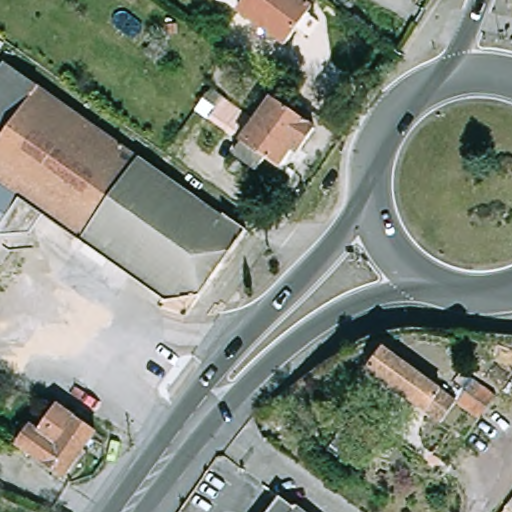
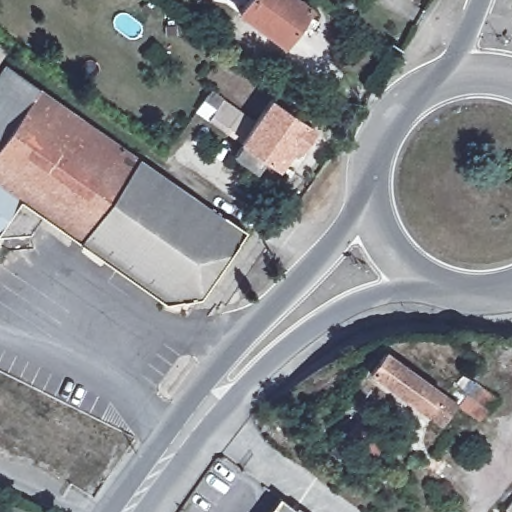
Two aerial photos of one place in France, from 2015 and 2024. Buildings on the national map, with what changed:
unchanged [(256,0),(324,0),(325,1),(316,12),(288,50),(244,17),(256,0)]
unchanged [(277,87),(263,77),(275,59),(300,72),(285,93),(277,87)]
unchanged [(248,231),(203,293),(171,299),(49,212),(0,177),(0,87),(16,65),(248,231)]
unchanged [(281,99),(325,130),(310,151),(305,148),(290,169),(275,159),(266,173),(242,156),(251,144),(218,120),(206,112),(221,90),(233,98),(266,121),(281,99)]
unchanged [(34,232),(0,235),(0,177),(49,212),(34,232)]
unchanged [(373,371),(389,349),(462,404),(447,425),(373,371)]
unchanged [(501,397),(484,420),(462,404),(480,381),(501,397)]
demolished [(39,433),(59,405),(98,433),(65,479),(18,446),(31,428),(39,433)]
unchanged [(346,431),(357,418),(385,440),(374,453),(346,431)]
unchanged [(285,497),(305,512),(274,512),(285,497)]

